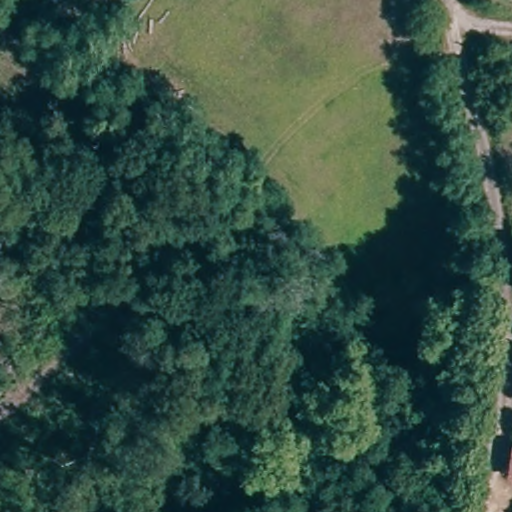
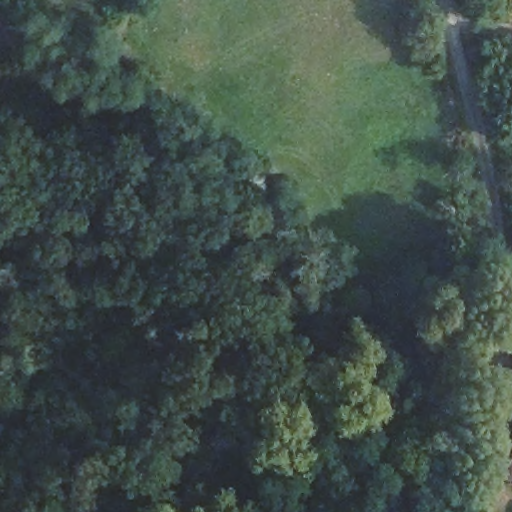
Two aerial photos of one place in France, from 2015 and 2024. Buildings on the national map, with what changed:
unchanged [(509,478),(512,458),(512,479),(509,478)]

